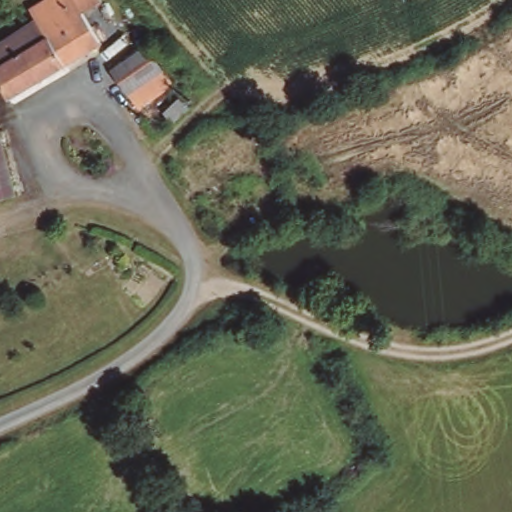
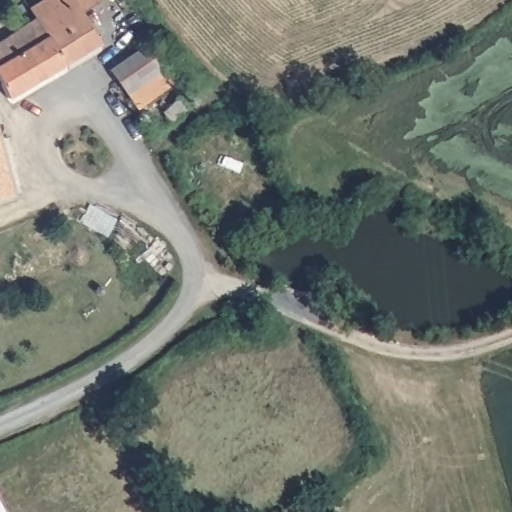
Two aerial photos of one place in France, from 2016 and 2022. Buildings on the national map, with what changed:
unchanged [(49,0),(102,0),(103,1),(99,3),(83,13),(84,14),(102,43),(78,58),(61,69),(33,24),(28,15),(50,2),(49,0)]
unchanged [(40,81),(8,101),(0,87),(0,46),(33,24),(61,69),(40,81)]
unchanged [(113,68),(142,45),(173,83),(147,104),(140,109),(110,71),(113,68)]
unchanged [(174,117),(165,107),(180,92),(189,101),(184,106),(174,117)]
unchanged [(13,199),(0,202),(0,145),(1,151),(13,199)]

